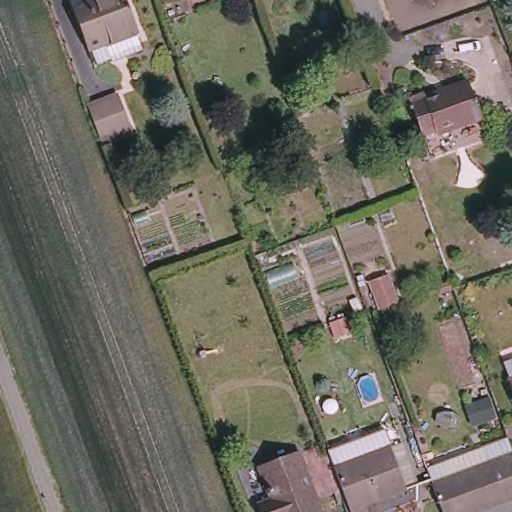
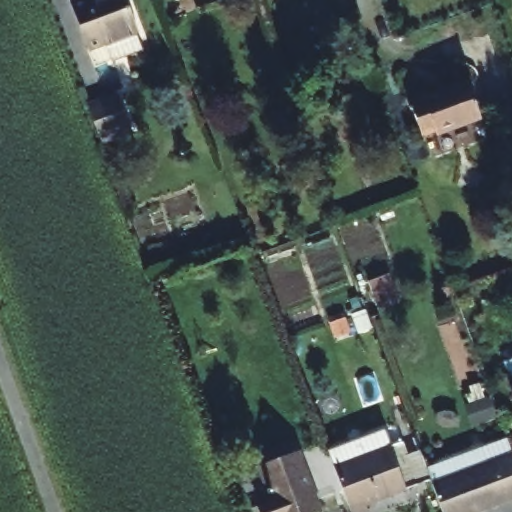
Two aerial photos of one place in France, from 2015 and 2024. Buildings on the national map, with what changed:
unchanged [(103,38),(88,44),(72,1),(76,0),(127,0),(137,26),(133,28),(139,45),(110,56),(103,38)]
unchanged [(429,95),(471,84),(483,121),(437,134),(436,129),(422,134),(409,93),(428,88),(429,95)]
unchanged [(96,142),(84,109),(119,97),(131,129),(96,142)]
unchanged [(510,383),(512,382),(512,389),(510,383)]
unchanged [(479,391),(488,388),(495,407),(488,410),(479,391)]
unchanged [(432,487),(427,473),(482,453),(504,445),(511,442),(512,445),(512,502),(485,512),(440,512),(439,506),(432,487)]
unchanged [(363,503),(367,512),(349,512),(333,466),(392,444),(406,487),(363,503)]
unchanged [(320,512),(266,512),(261,502),(276,497),(264,466),(303,452),(324,510),(320,512)]

